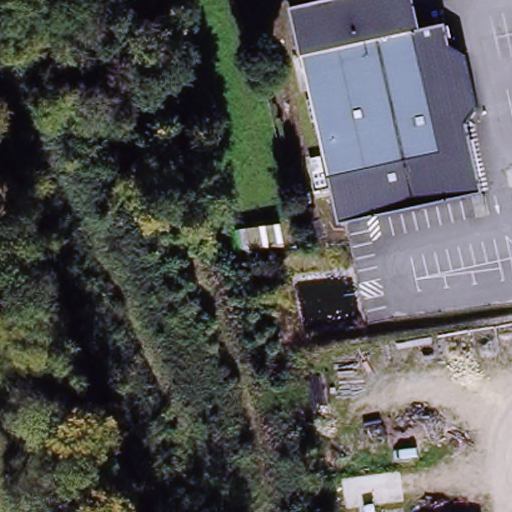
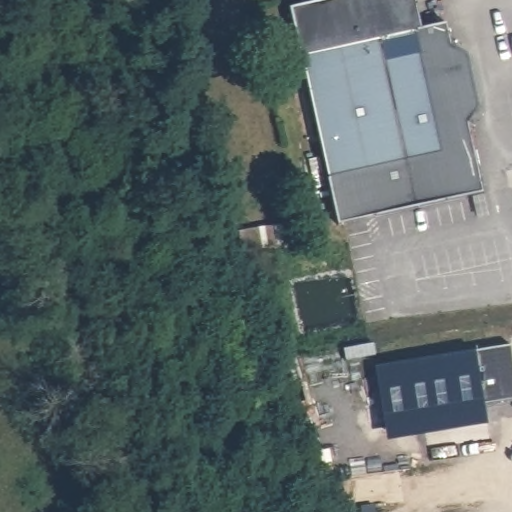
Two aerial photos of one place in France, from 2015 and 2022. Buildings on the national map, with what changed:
unchanged [(304,60),(291,9),(332,0),(414,0),(422,32),(304,60)]
unchanged [(477,147),(449,154),(419,33),(449,26),(477,147)]
unchanged [(334,180),(304,60),(419,33),(449,154),(334,180)]
unchanged [(471,149),(482,194),(341,225),(334,180),(471,149)]
new [(294,225),(296,250),(243,255),(239,230),(294,225)]
new [(484,403),(487,425),(388,441),(378,367),(477,351),(511,346),(512,356),(512,399),(484,403)]

